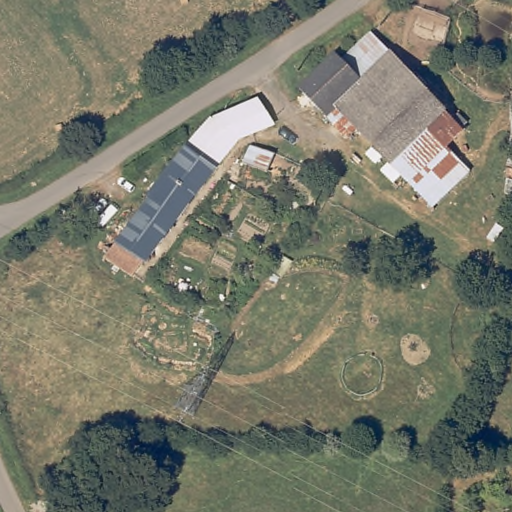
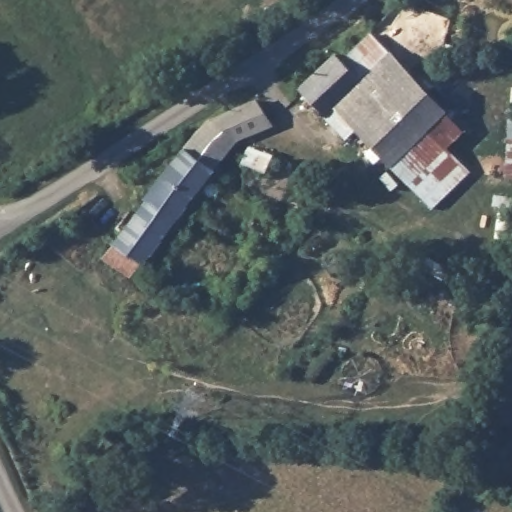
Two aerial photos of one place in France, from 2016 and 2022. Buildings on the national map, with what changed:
unchanged [(462,133),(449,151),(472,175),(434,216),(391,174),(335,113),(324,127),(294,87),(372,35),(387,51),(462,133)]
unchanged [(208,124),(225,115),(257,106),(277,129),(270,131),(240,141),(135,281),(106,260),(128,231),(208,124)]
unchanged [(266,171),(262,170),(259,170),(258,174),(254,180),(250,181),(245,178),(244,171),(247,166),(249,164),(245,162),(254,145),(277,152),(266,171)]

